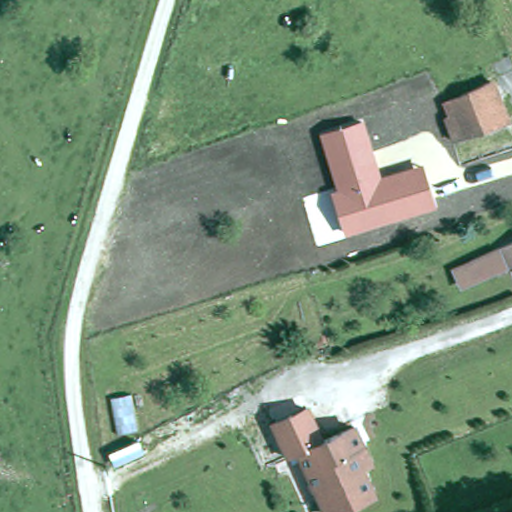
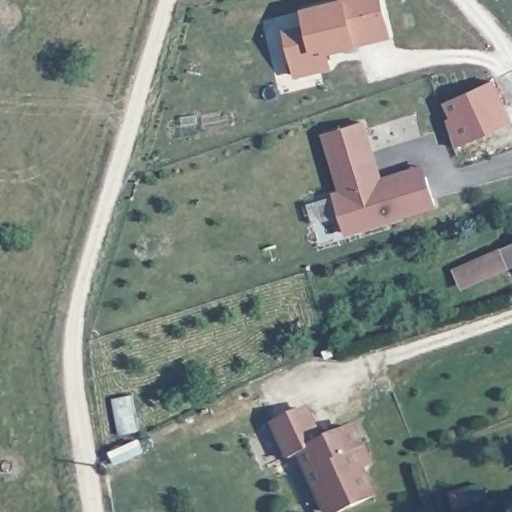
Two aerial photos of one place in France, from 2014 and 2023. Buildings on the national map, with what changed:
new [(296,75),(285,31),(307,26),(303,11),(343,1),(343,0),(381,0),(390,37),(337,49),(327,51),(330,67),(296,75)]
unchanged [(491,82),(511,123),(454,143),(447,121),(453,118),(446,103),(491,82)]
unchanged [(382,176),(421,164),(436,206),(345,235),(331,192),(337,190),(319,133),(363,121),(382,176)]
unchanged [(512,270),(488,279),(486,277),(465,286),(458,272),(512,248),(512,270)]
unchanged [(318,487),(301,448),(291,453),(276,417),(310,402),(324,436),(357,421),(375,459),(365,464),(376,492),(335,509),(329,511),(318,487)]
unchanged [(129,436),(115,438),(109,409),(125,406),(129,436)]

